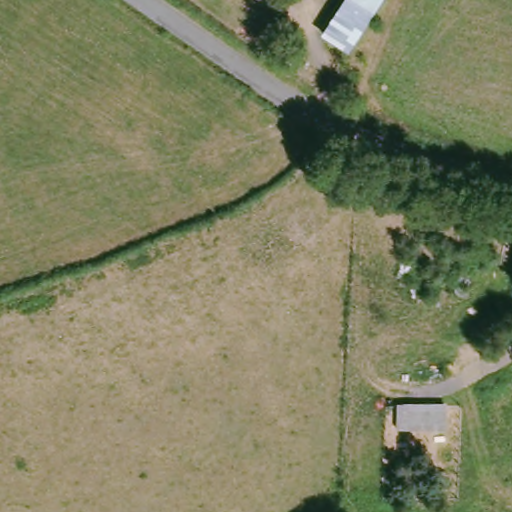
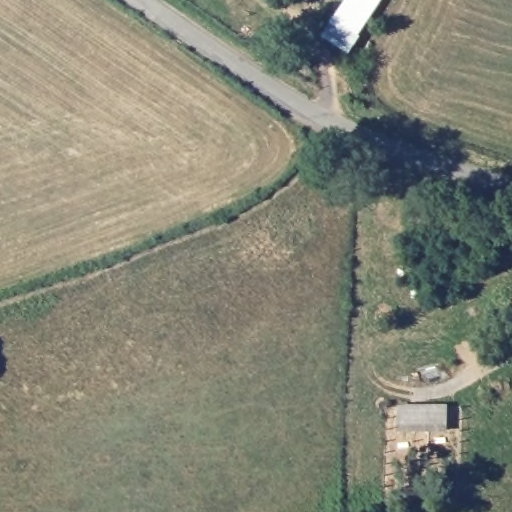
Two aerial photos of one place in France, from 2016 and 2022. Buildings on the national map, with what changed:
unchanged [(350,55),(321,31),(340,0),(384,0),(350,55)]
unchanged [(446,402),(445,428),(395,429),(397,402),(446,402)]

